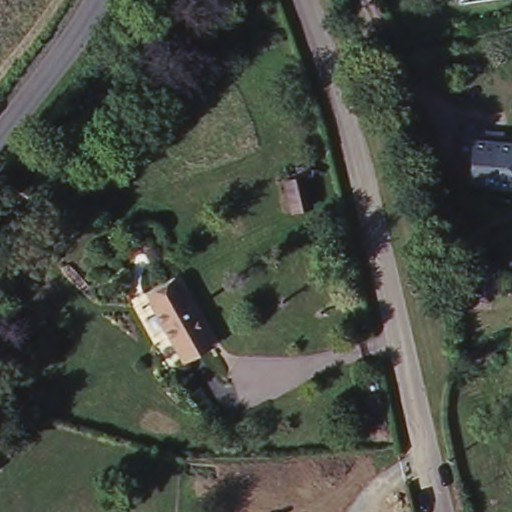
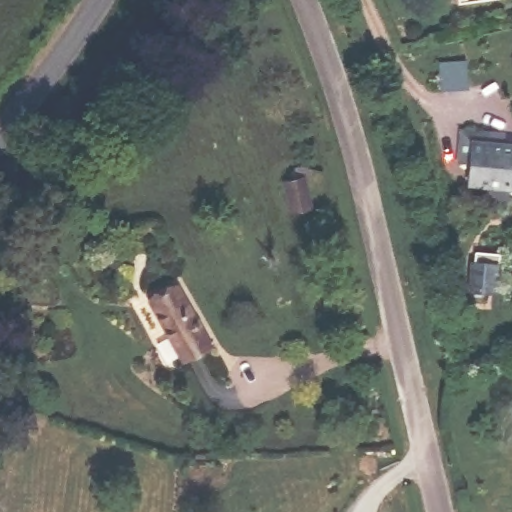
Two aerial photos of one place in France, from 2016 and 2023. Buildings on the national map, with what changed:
unchanged [(470,164),(457,164),(454,128),(472,129),(497,130),(498,144),(512,144),(512,191),(472,189),(470,164)]
unchanged [(466,262),(490,263),(492,299),(469,298),(466,262)]
unchanged [(136,298),(164,282),(205,342),(176,357),(136,298)]

